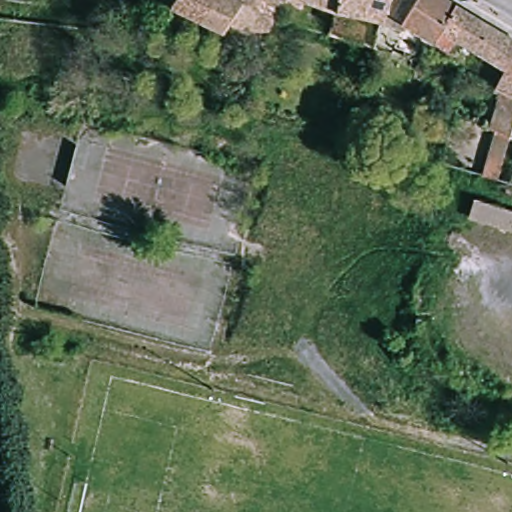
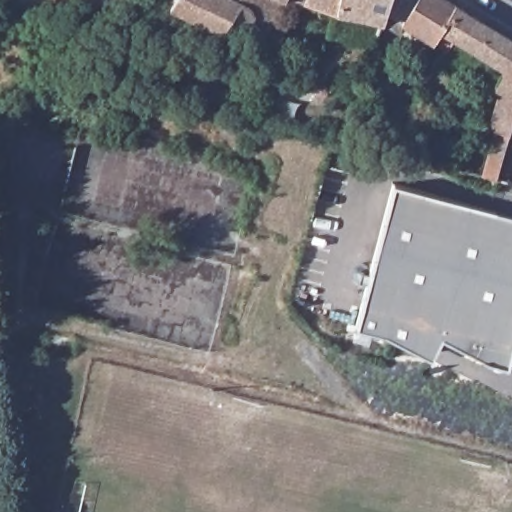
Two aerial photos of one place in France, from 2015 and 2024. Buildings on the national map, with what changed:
unchanged [(254,27),(236,17),(229,27),(175,0),(238,0),(252,16),(254,27)]
unchanged [(278,25),(254,27),(252,16),(238,0),(290,0),(279,25),(278,25)]
unchanged [(332,0),(342,0),(341,4),(332,0)]
unchanged [(341,4),(342,0),(392,0),(387,17),(341,4)]
unchanged [(406,26),(387,17),(392,0),(421,0),(410,18),(406,26)]
unchanged [(512,85),(510,84),(502,79),(510,62),(447,25),(440,35),(410,18),(421,0),(447,0),(512,35),(512,85)]
unchanged [(512,142),(502,177),(489,172),(502,126),(497,123),(510,84),(512,85),(512,142)]
new [(512,359),(509,369),(486,363),(443,338),(431,358),(389,336),(359,325),(394,185),(512,216),(512,359)]

